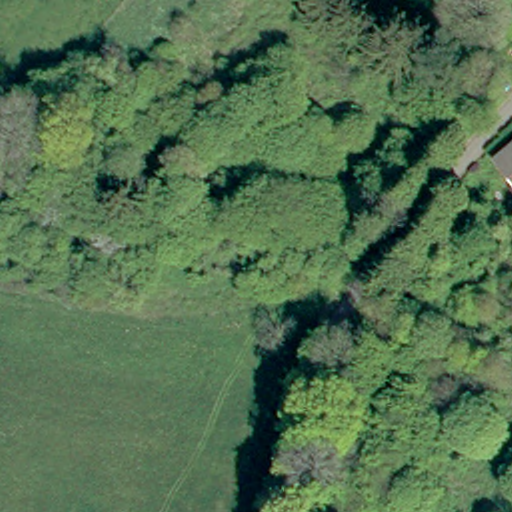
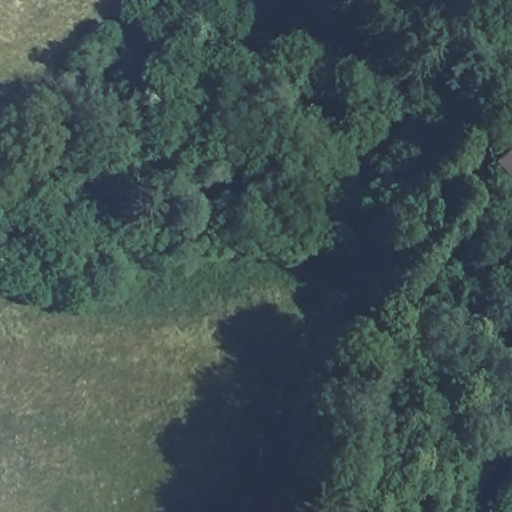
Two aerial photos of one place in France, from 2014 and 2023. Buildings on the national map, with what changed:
unchanged [(494,169),(512,154),(512,191),(494,169)]
unchanged [(509,197),(512,195),(512,202),(509,197)]

